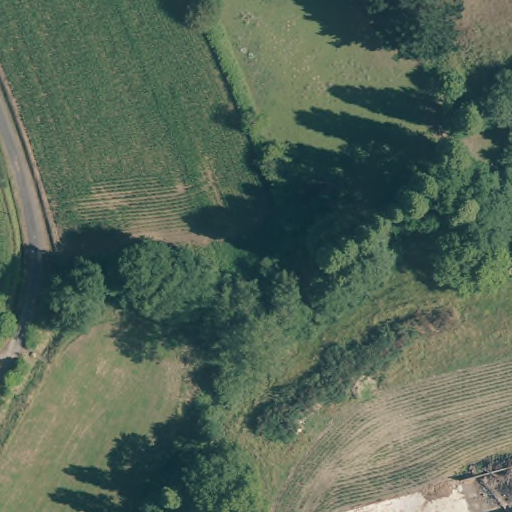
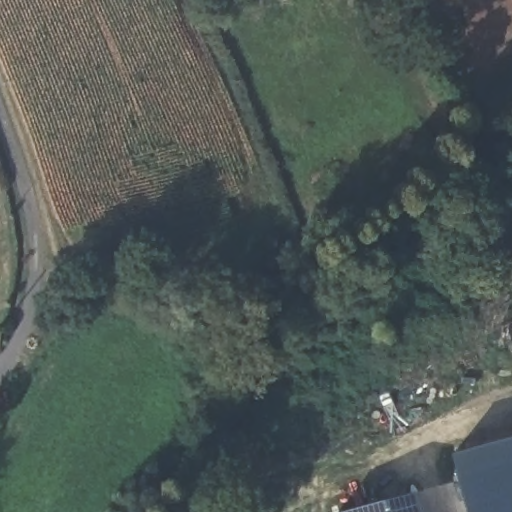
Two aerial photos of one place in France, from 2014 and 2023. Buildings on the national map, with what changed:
new [(452,454),(512,438),(512,512),(471,512),(452,454)]

